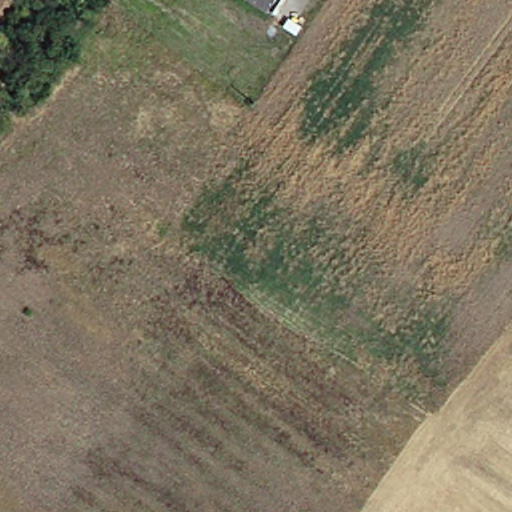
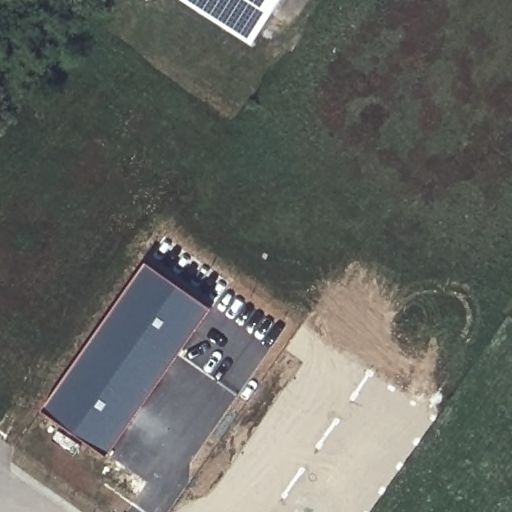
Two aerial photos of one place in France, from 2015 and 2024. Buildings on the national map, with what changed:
new [(246,41),(181,0),(238,0),(260,15),(246,41)]
unchanged [(238,0),(270,0),(260,15),(238,0)]
new [(109,454),(45,408),(149,262),(212,307),(109,454)]

